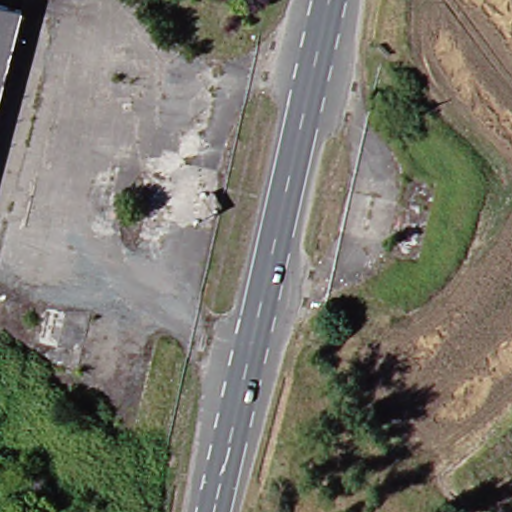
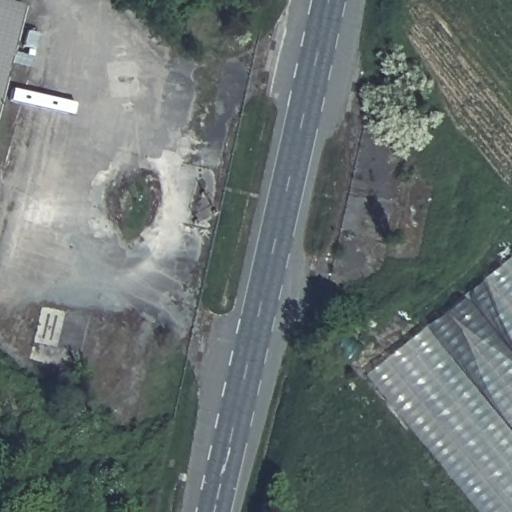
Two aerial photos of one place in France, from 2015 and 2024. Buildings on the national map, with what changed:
unchanged [(0,72),(0,4),(17,9),(0,72)]
new [(512,258),(512,512),(475,512),(365,377),(512,258)]

